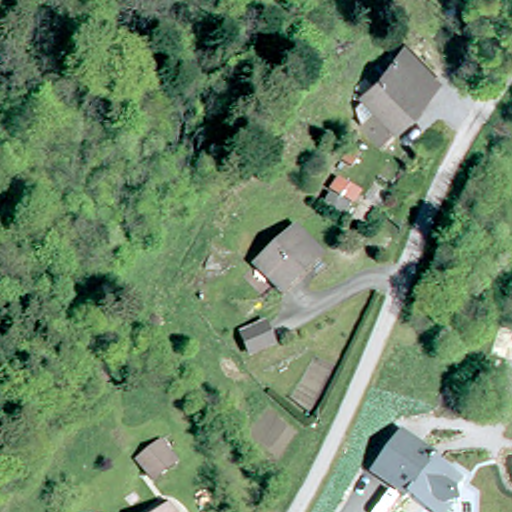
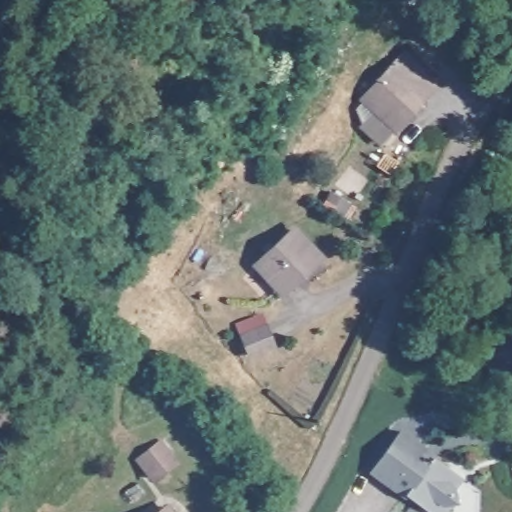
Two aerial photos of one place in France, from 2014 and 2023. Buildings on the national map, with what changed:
unchanged [(387,144),(367,128),(369,126),(362,110),(369,101),(361,95),(380,70),(388,77),(407,52),(438,77),(387,144)]
unchanged [(340,196),(330,211),(313,200),(322,186),(340,196)]
unchanged [(288,229),(314,252),(277,290),(252,265),(288,229)]
unchanged [(257,322),(267,342),(252,348),(245,351),(237,331),(257,322)]
unchanged [(432,460),(462,481),(457,490),(459,502),(456,503),(457,508),(453,512),(431,512),(407,495),(402,500),(367,473),(400,431),(435,456),(432,460)]
unchanged [(134,460),(154,443),(169,461),(149,477),(134,460)]
unchanged [(165,512),(161,512),(164,511),(165,512)]

